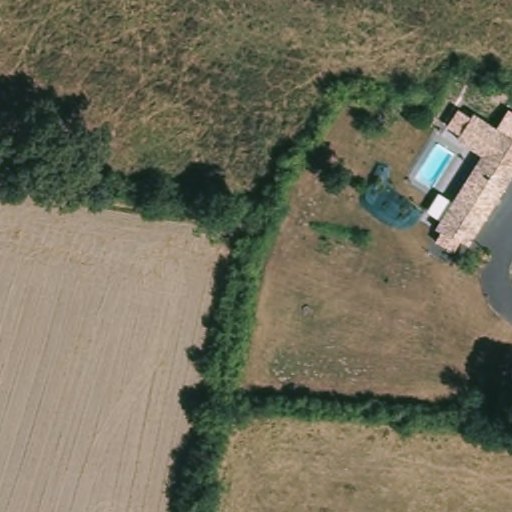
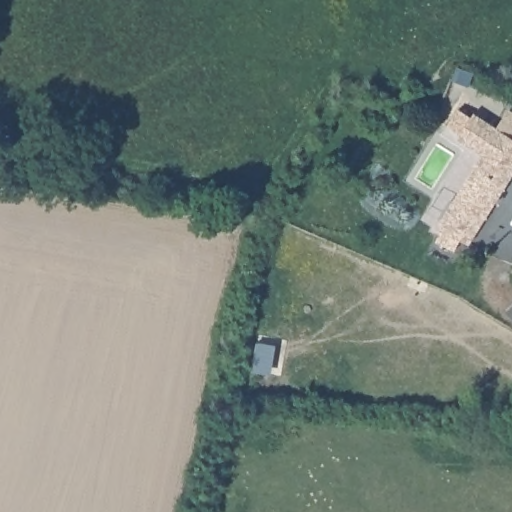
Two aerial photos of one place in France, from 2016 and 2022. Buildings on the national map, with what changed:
unchanged [(461,195),(492,150),(478,141),(485,129),(500,136),(503,130),(512,134),(512,179),(484,227),(450,207),(438,201),(448,186),(461,195)]
unchanged [(450,207),(484,227),(465,258),(448,250),(454,236),(439,226),(450,207)]

